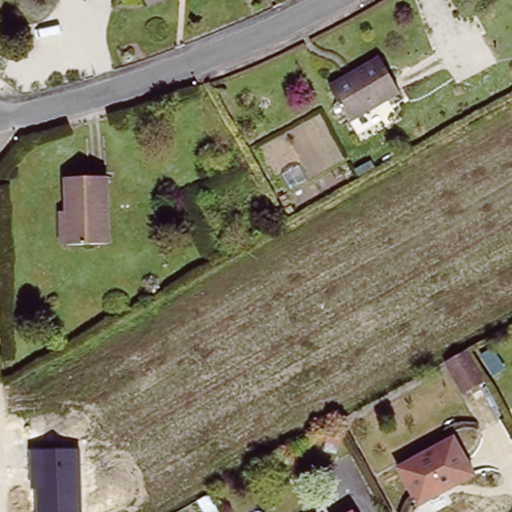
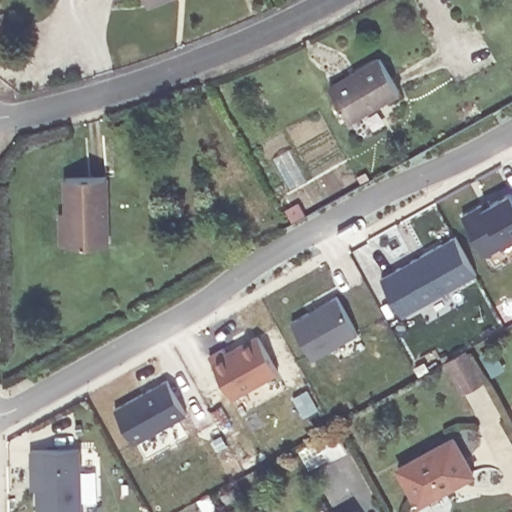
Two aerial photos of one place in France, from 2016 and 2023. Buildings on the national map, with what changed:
unchanged [(142,0),(151,0),(143,3),(142,0)]
unchanged [(381,56),(401,91),(349,120),(329,86),(381,56)]
unchanged [(56,210),(61,211),(62,180),(102,181),(101,244),(61,244),(56,244),(56,210)]
new [(485,255),(463,214),(482,203),(483,205),(511,190),(512,193),(512,240),(485,255)]
new [(489,199),(491,201),(483,205),(482,203),(489,199)]
new [(456,235),(477,273),(403,315),(381,277),(456,235)]
new [(358,333),(313,358),(291,321),(337,296),(358,333)]
new [(209,355),(224,347),(227,352),(258,335),(278,371),(232,397),(209,355)]
unchanged [(465,349),(483,380),(464,391),(446,360),(465,349)]
new [(167,378),(186,413),(134,442),(114,407),(167,378)]
unchanged [(448,437),(468,474),(414,503),(394,467),(448,437)]
unchanged [(37,488),(29,488),(30,451),(81,450),(84,512),(38,512),(37,488)]

